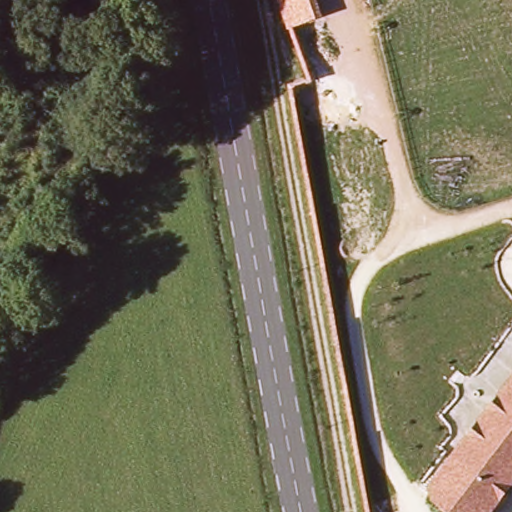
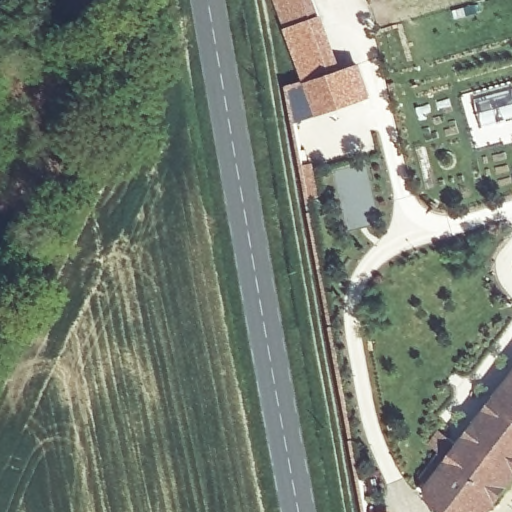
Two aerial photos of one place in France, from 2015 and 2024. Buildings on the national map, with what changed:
unchanged [(322,16),(287,30),(277,0),(317,0),(322,16)]
new [(317,114),(305,81),(287,30),(322,16),(342,71),(360,64),(372,97),(317,114)]
unchanged [(450,512),(436,501),(433,490),(512,382),(512,485),(493,512),(450,512)]

